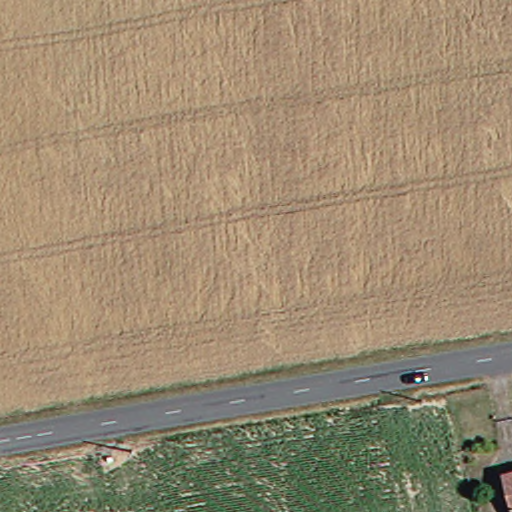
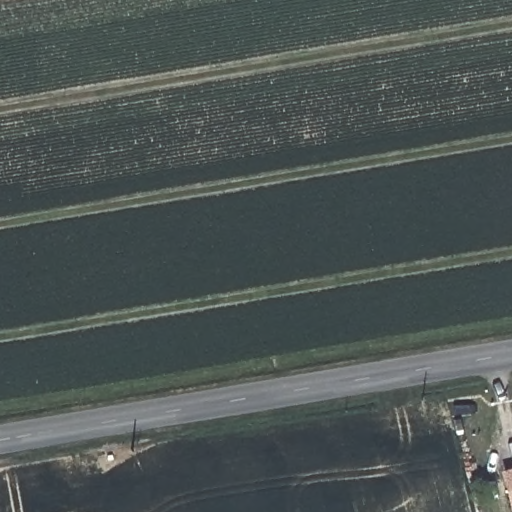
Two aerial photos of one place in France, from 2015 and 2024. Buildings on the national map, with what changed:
unchanged [(512,471),(512,512),(505,512),(499,474),(512,471)]

